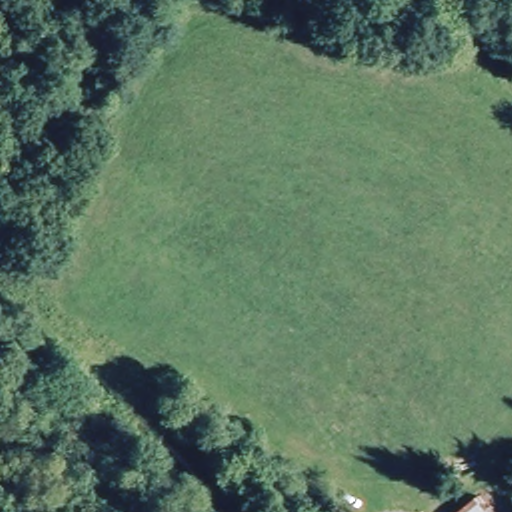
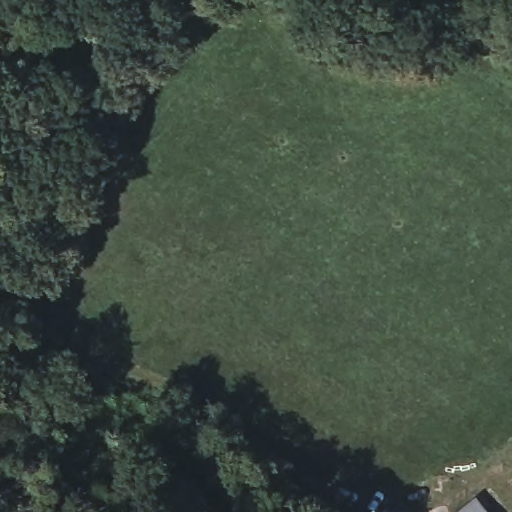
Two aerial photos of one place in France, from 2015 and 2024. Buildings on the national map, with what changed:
unchanged [(453,512),(472,495),(488,512),(453,512)]

